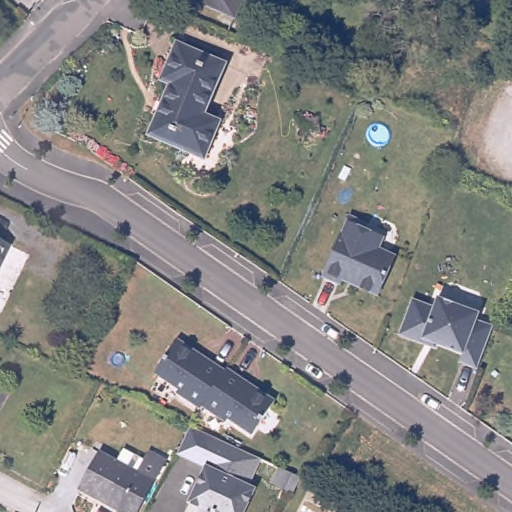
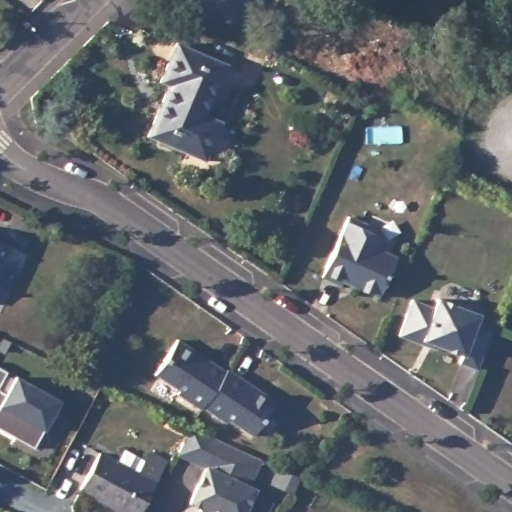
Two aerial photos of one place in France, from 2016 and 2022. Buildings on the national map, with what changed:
unchanged [(196,3),(197,0),(243,0),(235,19),(196,3)]
unchanged [(247,40),(252,26),(276,35),(270,50),(247,40)]
unchanged [(147,136),(169,87),(159,82),(175,43),(227,64),(206,116),(220,122),(204,160),(147,136)]
unchanged [(344,283),(325,274),(352,214),(372,223),(369,228),(387,236),(382,247),(393,252),(396,259),(381,294),(357,283),(346,278),(344,283)]
unchanged [(0,267),(0,241),(11,246),(0,267)]
unchanged [(427,335),(405,327),(417,291),(439,299),(442,290),(484,305),(482,312),(498,318),(482,361),(464,354),(467,346),(442,337),(441,340),(427,335)]
unchanged [(202,408),(178,393),(180,389),(156,373),(179,339),(227,371),(204,405),(202,408)]
unchanged [(228,368),(276,400),(254,433),(230,417),(227,420),(204,405),(227,371),(228,368)]
new [(16,377),(59,401),(44,430),(35,447),(0,428),(0,369),(6,372),(16,377)]
unchanged [(190,426),(260,459),(246,487),(254,491),(243,512),(198,512),(200,508),(190,503),(200,484),(207,468),(204,466),(176,453),(190,426)]
unchanged [(143,459),(148,452),(165,461),(137,512),(120,512),(79,489),(99,452),(116,462),(124,449),(143,459)]
unchanged [(301,478),(292,492),(271,482),(277,467),(301,478)]

